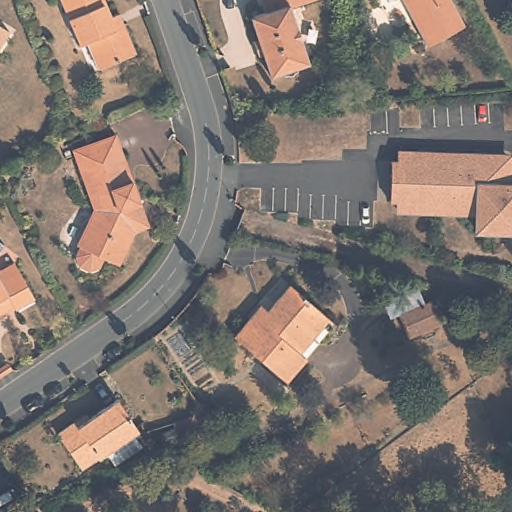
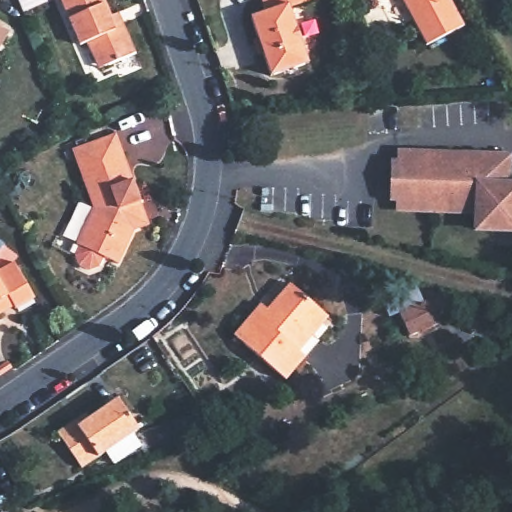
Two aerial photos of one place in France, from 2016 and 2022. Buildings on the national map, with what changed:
unchanged [(99,69),(88,42),(79,45),(60,0),(103,0),(110,18),(118,14),(123,27),(134,54),(99,69)]
unchanged [(265,73),(247,14),(261,10),(258,0),(300,0),(285,4),(303,62),(265,73)]
unchanged [(462,26),(425,46),(399,0),(447,0),(462,26)]
unchanged [(0,44),(0,29),(6,33),(0,44)]
unchanged [(140,225),(134,228),(118,264),(103,257),(99,265),(90,269),(80,264),(76,255),(80,246),(78,244),(94,207),(73,149),(114,133),(135,189),(139,200),(147,222),(140,225)]
unchanged [(508,156),(508,183),(512,184),(512,231),(477,229),(478,209),(399,205),(399,199),(391,198),(392,158),(401,158),(401,152),(508,156)]
unchanged [(34,296),(14,307),(10,301),(1,306),(3,309),(0,311),(0,267),(14,259),(34,296)]
unchanged [(255,304),(264,312),(272,303),(269,301),(284,283),(322,315),(307,334),(309,337),(295,353),(299,356),(279,379),(229,335),(255,304)]
unchanged [(439,323),(407,338),(396,314),(428,300),(438,319),(439,323)]
unchanged [(79,471),(59,440),(87,422),(116,403),(137,433),(79,471)]

